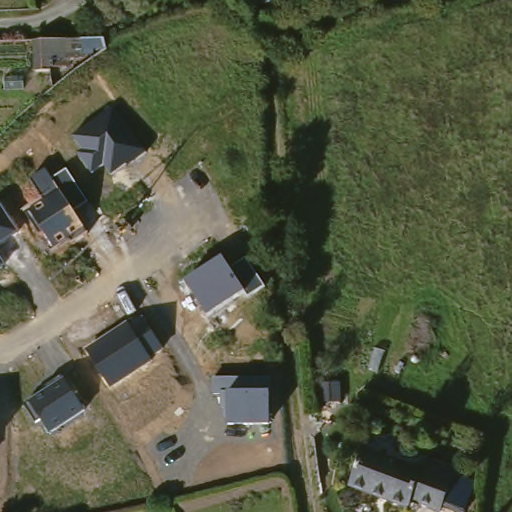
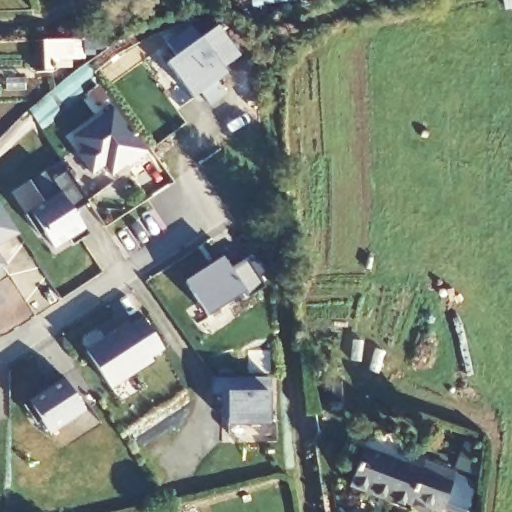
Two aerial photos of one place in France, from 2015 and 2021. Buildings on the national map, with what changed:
new [(189,25),(201,39),(216,26),(240,56),(222,69),(227,75),(216,82),(226,96),(210,109),(200,94),(192,99),(165,64),(176,56),(166,42),(189,25)]
unchanged [(88,38),(86,55),(74,56),(73,70),(58,70),(59,37),(88,38)]
unchanged [(77,152),(82,150),(72,135),(111,109),(146,153),(126,166),(125,165),(111,175),(103,166),(92,172),(77,152)]
unchanged [(42,230),(39,234),(25,212),(29,209),(44,199),(31,180),(46,170),(52,180),(66,170),(87,203),(72,210),(84,229),(54,249),(42,230)]
unchanged [(18,234),(0,245),(0,207),(18,234)]
unchanged [(183,282),(222,257),(232,270),(246,260),(265,287),(250,300),(245,291),(206,318),(183,282)]
unchanged [(5,266),(0,270),(0,258),(5,266)]
unchanged [(86,349),(126,322),(129,325),(142,318),(163,350),(150,358),(151,361),(110,389),(86,349)]
unchanged [(41,418),(35,422),(25,405),(29,401),(63,378),(85,411),(50,433),(41,418)]
unchanged [(227,416),(224,417),(224,408),(220,408),(220,393),(211,394),(211,378),(244,378),(245,392),(270,392),(270,425),(228,425),(227,416)]
unchanged [(443,512),(422,501),(418,512),(412,512),(351,486),(370,448),(427,469),(432,457),(463,468),(444,512),(443,512)]

